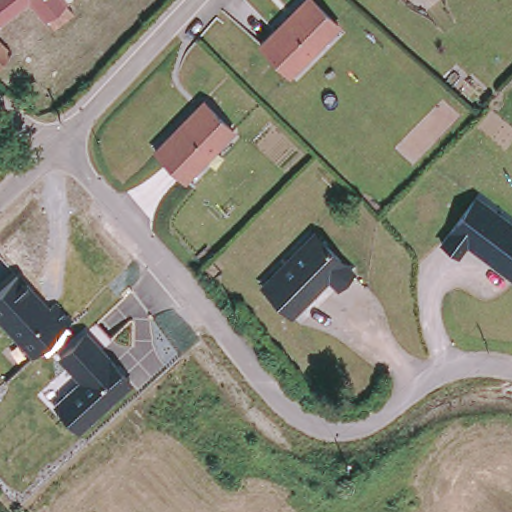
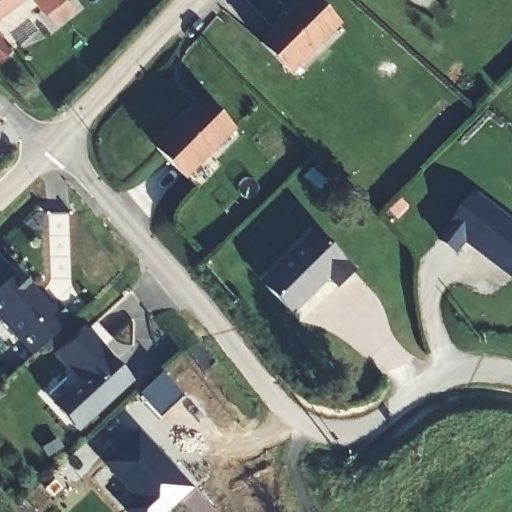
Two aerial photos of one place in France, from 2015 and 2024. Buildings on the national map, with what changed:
unchanged [(73,7),(81,16),(60,30),(54,20),(46,10),(41,4),(0,35),(0,0),(68,0),(73,7)]
unchanged [(332,26),(285,73),(256,45),(280,21),(281,22),(289,15),(287,12),(300,0),(306,0),(332,26)]
unchanged [(22,63),(0,79),(0,35),(5,42),(22,63)]
unchanged [(183,176),(154,148),(170,132),(172,134),(178,126),(176,124),(200,101),(230,128),(183,176)]
unchanged [(512,226),(512,282),(467,248),(458,259),(440,244),(475,197),(512,226)]
unchanged [(317,226),(356,270),(340,287),(330,277),(293,315),(260,281),(317,226)]
unchanged [(32,359),(0,325),(0,289),(16,274),(68,329),(32,359)]
unchanged [(108,359),(135,385),(79,435),(51,405),(80,381),(56,355),(85,331),(108,359)]
new [(137,394),(160,373),(181,396),(159,417),(137,394)]
new [(135,497),(101,462),(135,430),(187,485),(159,512),(126,512),(123,508),(135,497)]

